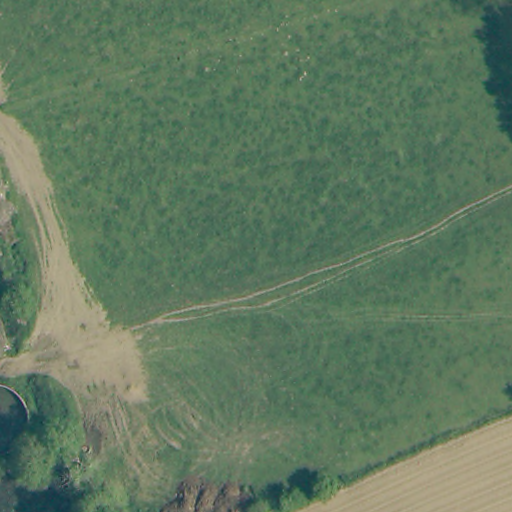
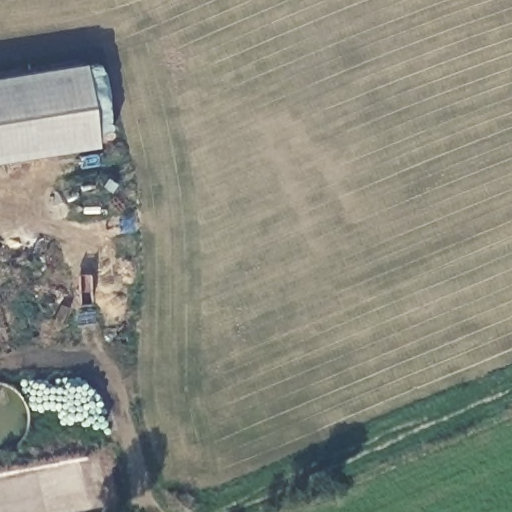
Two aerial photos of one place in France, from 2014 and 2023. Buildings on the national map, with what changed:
new [(0,77),(82,63),(96,146),(0,161),(0,77)]

